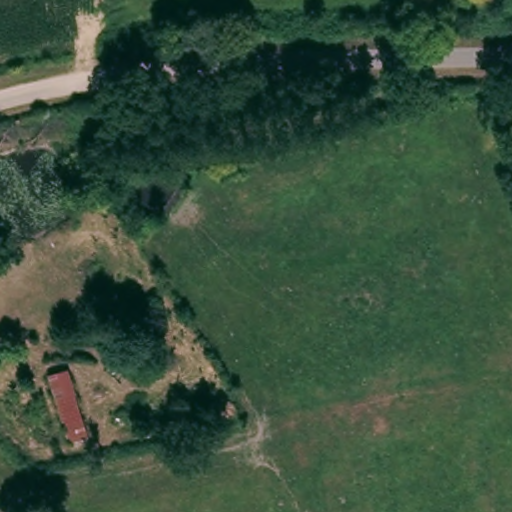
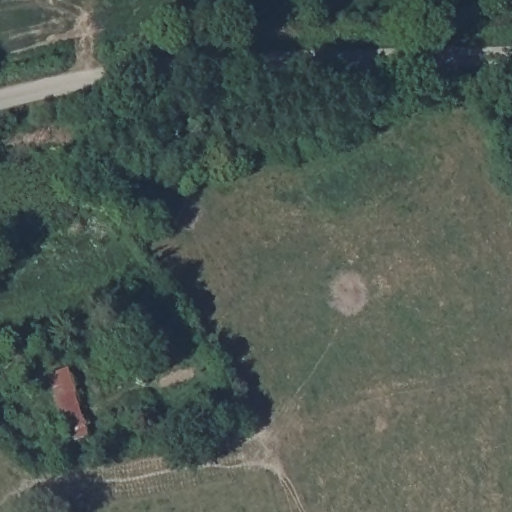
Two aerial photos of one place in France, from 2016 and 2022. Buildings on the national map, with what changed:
unchanged [(89,440),(66,445),(46,376),(66,368),(89,440)]

